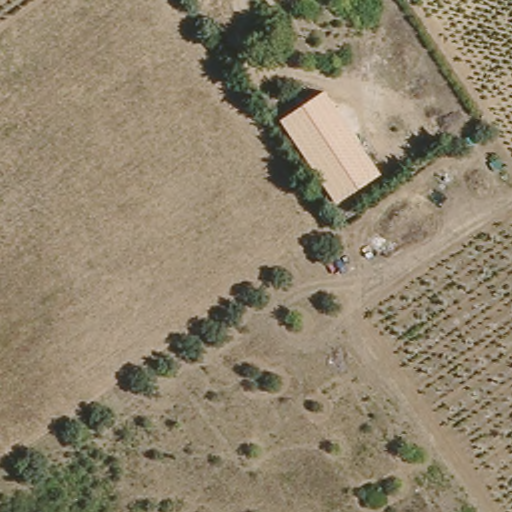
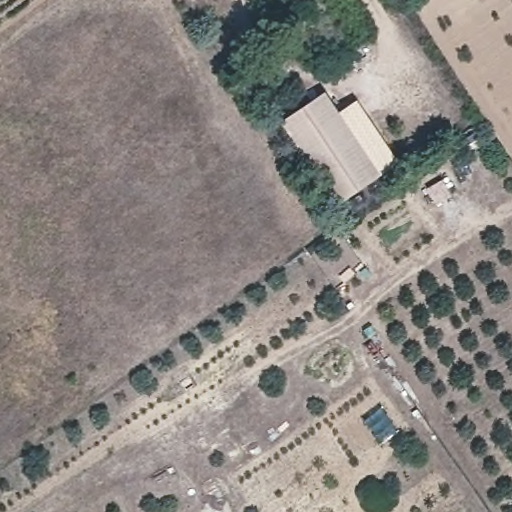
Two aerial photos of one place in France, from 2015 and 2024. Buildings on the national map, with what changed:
unchanged [(383,173),(337,205),(281,120),(326,90),(383,173)]

